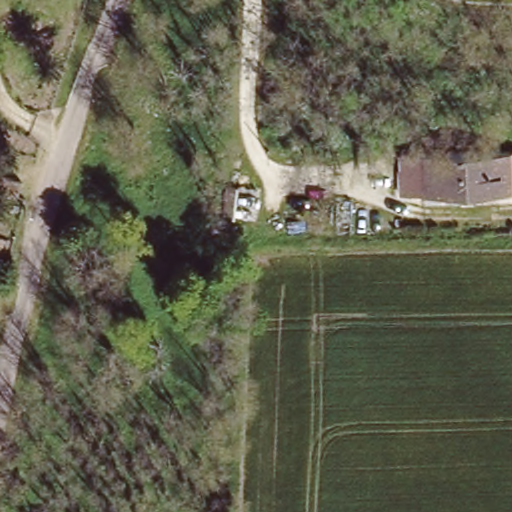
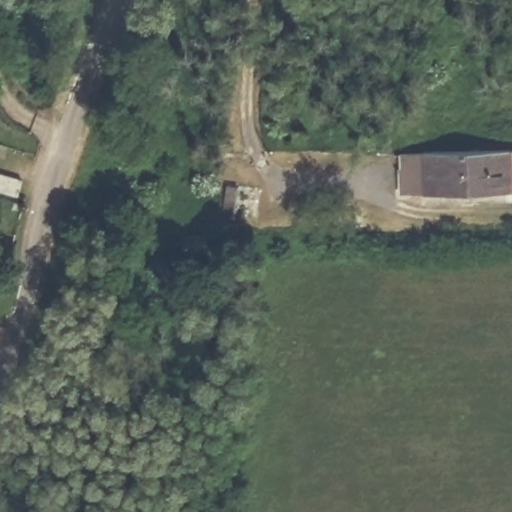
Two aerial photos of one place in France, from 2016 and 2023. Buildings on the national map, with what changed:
unchanged [(399,158),(512,156),(512,193),(401,195),(399,158)]
unchanged [(21,183),(18,201),(0,198),(0,180),(21,183)]
unchanged [(256,221),(228,215),(234,183),(263,189),(256,221)]

